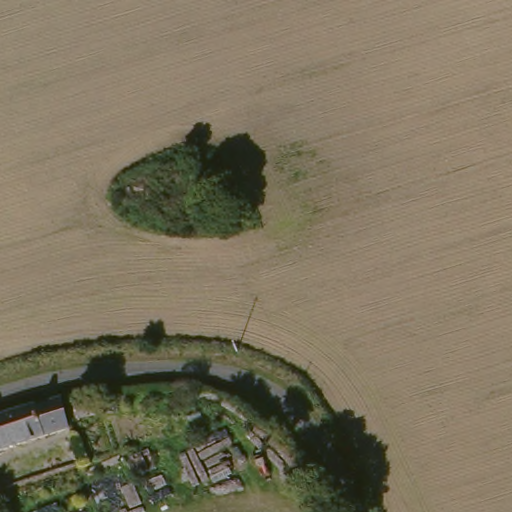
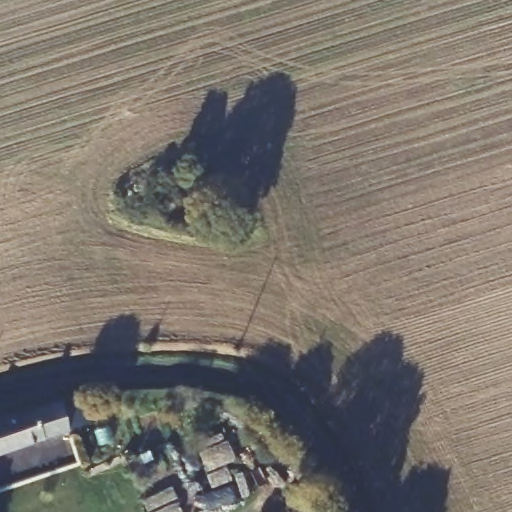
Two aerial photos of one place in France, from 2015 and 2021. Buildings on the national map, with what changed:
unchanged [(68,398),(78,429),(0,454),(0,419),(52,402),(68,398)]

